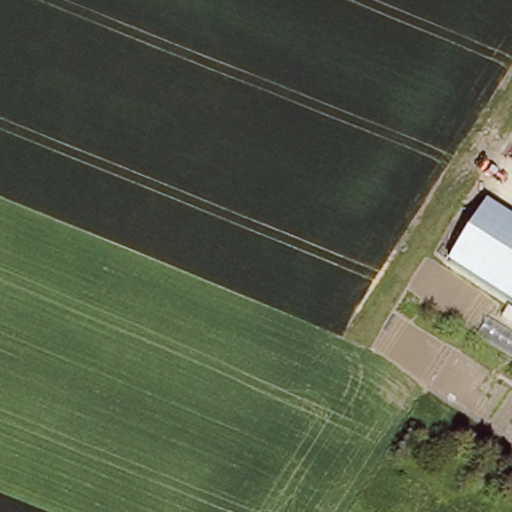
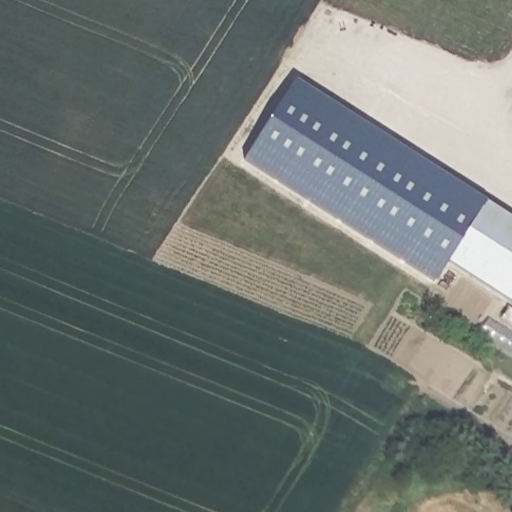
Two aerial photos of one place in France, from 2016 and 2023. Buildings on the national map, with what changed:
new [(473,220),(445,261),(450,264),(437,282),(247,156),(297,80),(487,201),(485,203),(473,220)]
unchanged [(469,265),(512,293),(512,305),(445,261),(473,220),(485,203),(502,214),(491,232),(469,265)]
unchanged [(512,293),(469,265),(491,232),(502,214),(512,220),(512,293)]

